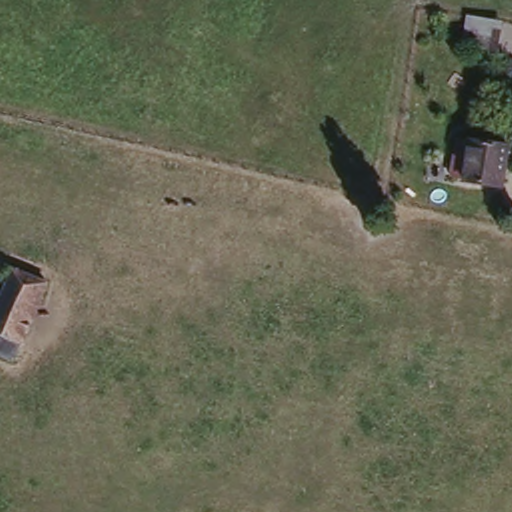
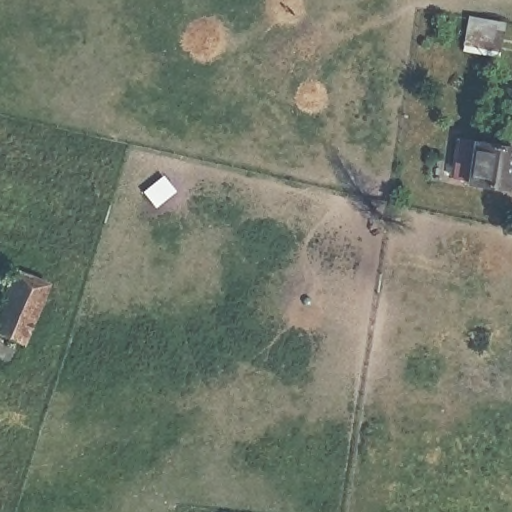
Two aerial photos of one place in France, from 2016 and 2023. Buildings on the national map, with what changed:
unchanged [(474,68),(480,42),(512,49),(512,57),(507,75),(474,68)]
unchanged [(470,137),(506,142),(499,186),(460,180),(470,137)]
unchanged [(0,356),(0,305),(16,263),(48,275),(21,343),(15,361),(0,356)]

